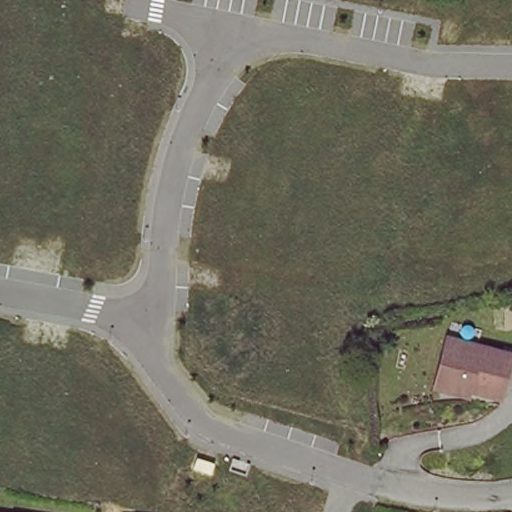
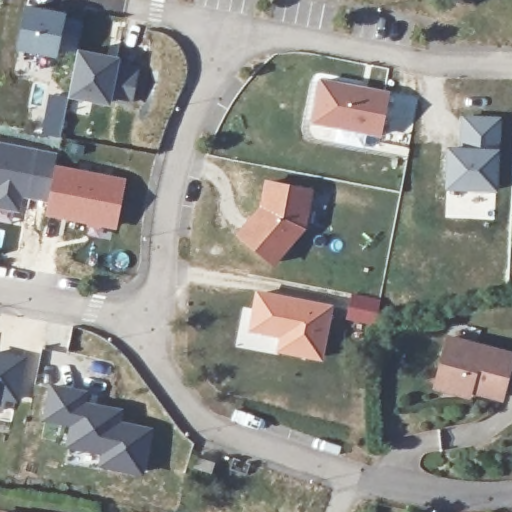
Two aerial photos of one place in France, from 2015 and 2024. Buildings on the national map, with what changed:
new [(69,14),(67,20),(84,22),(80,49),(120,58),(119,66),(138,69),(132,106),(112,102),(111,105),(69,97),(77,60),(57,55),(57,59),(16,49),(27,4),(69,14)]
new [(380,102),(375,150),(307,141),(315,93),(380,102)]
new [(489,205),(437,203),(439,162),(453,162),(456,129),(492,131),(489,205)]
new [(51,176),(47,200),(18,193),(14,208),(0,205),(0,146),(55,157),(51,176)]
new [(118,185),(111,236),(43,227),(51,176),(118,185)]
new [(258,208),(264,180),(315,190),(305,231),(274,267),(237,233),(258,208)]
new [(331,316),(320,374),(273,366),(277,347),(244,342),(251,299),(331,316)]
unchanged [(512,355),(512,389),(509,402),(445,386),(456,342),(512,355)]
new [(17,403),(4,401),(2,413),(0,413),(0,352),(27,358),(17,403)]
new [(85,398),(83,410),(121,418),(118,431),(146,437),(137,487),(93,479),(95,465),(61,458),(65,442),(36,435),(47,390),(85,398)]

